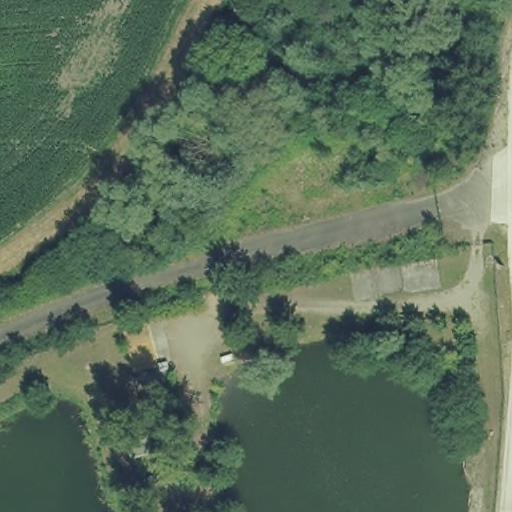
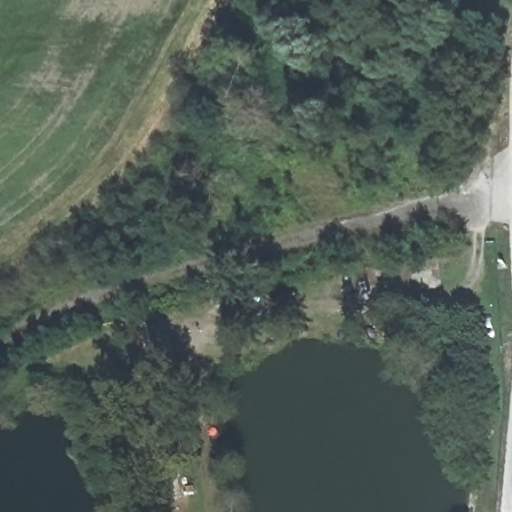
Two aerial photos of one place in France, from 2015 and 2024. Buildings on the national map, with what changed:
unchanged [(155,322),(164,370),(138,376),(129,331),(155,322)]

